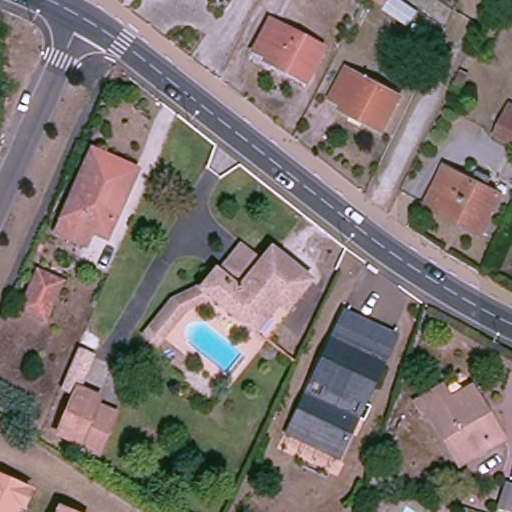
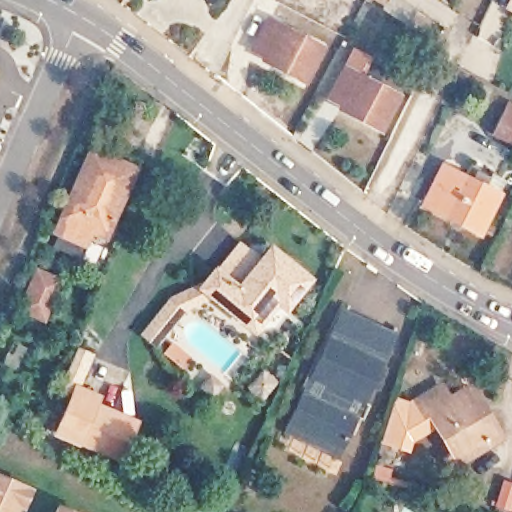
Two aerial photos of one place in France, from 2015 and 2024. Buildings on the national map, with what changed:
unchanged [(412,24),(387,8),(392,0),(415,0),(423,4),(412,24)]
new [(507,0),(512,0),(512,12),(503,8),(507,0)]
unchanged [(267,52),(257,47),(272,17),(326,46),(308,80),(272,62),(265,58),(267,52)]
unchanged [(342,101),(330,94),(346,65),(401,94),(382,129),(348,112),(340,107),(342,101)]
unchanged [(501,129),(512,103),(512,135),(501,129)]
unchanged [(87,229),(80,242),(52,229),(90,150),(130,168),(107,219),(100,235),(87,229)]
unchanged [(487,177),(483,187),(494,191),(476,228),(421,200),(439,164),(468,178),(473,169),(487,177)]
unchanged [(200,282),(216,265),(229,251),(237,242),(259,262),(239,285),(273,247),(307,277),(280,308),(285,315),(261,338),(210,290),(182,302),(161,330),(151,322),(171,294),(200,282)]
unchanged [(28,306),(39,280),(42,272),(64,282),(60,289),(49,315),(28,306)]
unchanged [(290,425),(310,384),(317,370),(350,307),(398,330),(365,394),(357,409),(337,448),(330,462),(282,438),(290,425)]
unchanged [(477,389),(494,418),(505,438),(463,463),(433,415),(428,417),(418,399),(423,396),(442,384),(453,402),(466,395),(477,389)]
unchanged [(62,438),(79,397),(100,406),(118,414),(115,424),(102,453),(62,438)]
new [(395,397),(412,402),(418,399),(428,417),(433,415),(440,425),(412,441),(408,452),(380,442),(395,397)]
unchanged [(26,508),(20,506),(18,512),(0,512),(0,476),(34,492),(26,508)]
new [(512,481),(512,508),(511,512),(506,512),(493,508),(502,478),(512,481)]
unchanged [(77,512),(60,512),(63,506),(77,512)]

